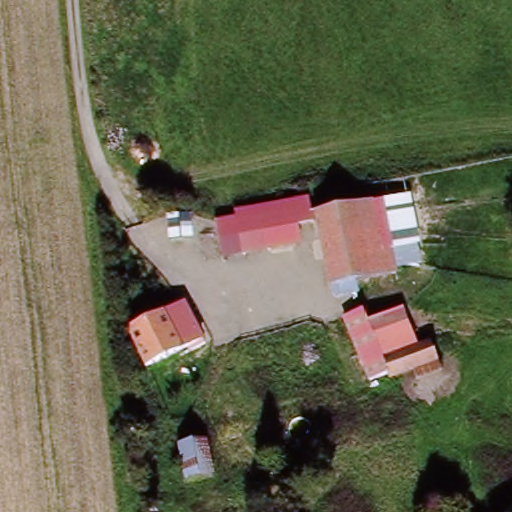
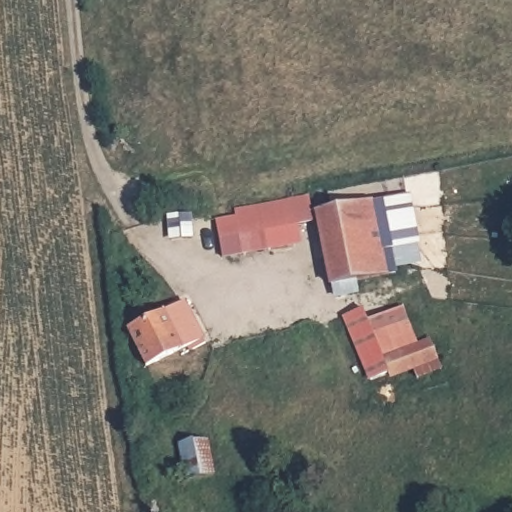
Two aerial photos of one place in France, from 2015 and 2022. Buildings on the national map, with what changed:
unchanged [(317,225),(301,231),(302,247),(241,256),(232,210),(311,196),(315,216),(411,197),(424,272),(330,288),(317,225)]
unchanged [(127,331),(186,302),(208,343),(148,371),(127,331)]
unchanged [(439,363),(386,375),(374,378),(354,322),(367,317),(370,323),(407,312),(417,345),(436,341),(439,363)]
unchanged [(184,447),(212,443),(217,480),(189,483),(184,447)]

